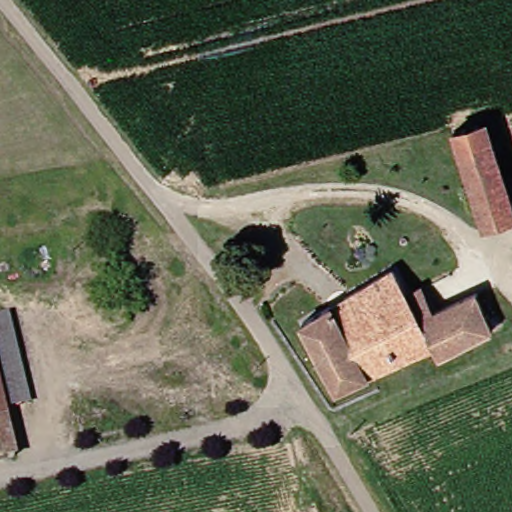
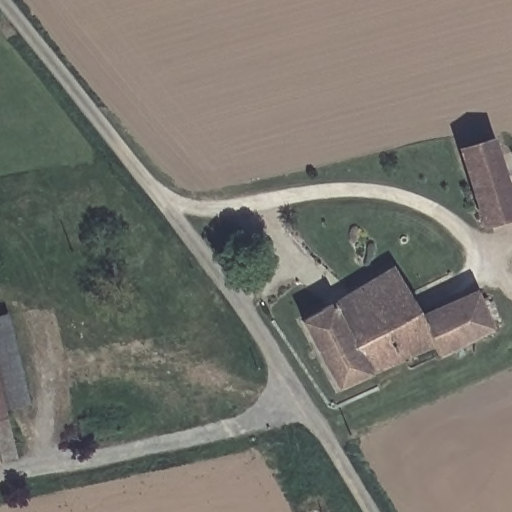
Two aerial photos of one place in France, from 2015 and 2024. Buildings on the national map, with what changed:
unchanged [(450,129),(481,118),(512,214),(481,224),(450,129)]
unchanged [(417,317),(473,292),(490,328),(433,354),(428,344),(333,389),(300,321),(393,269),(405,293),(417,317)]
unchanged [(0,404),(0,314),(20,400),(0,404)]
unchanged [(0,457),(0,429),(5,456),(0,457)]

